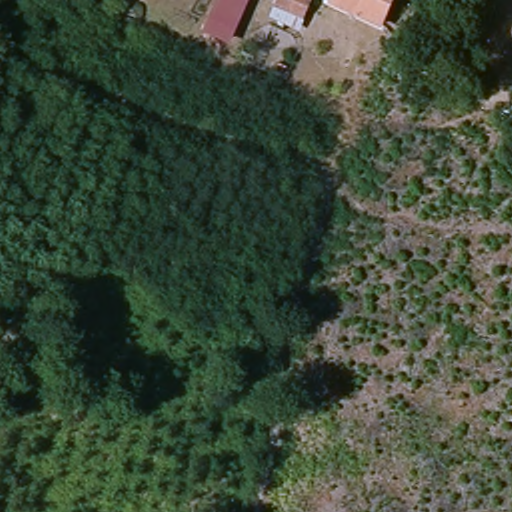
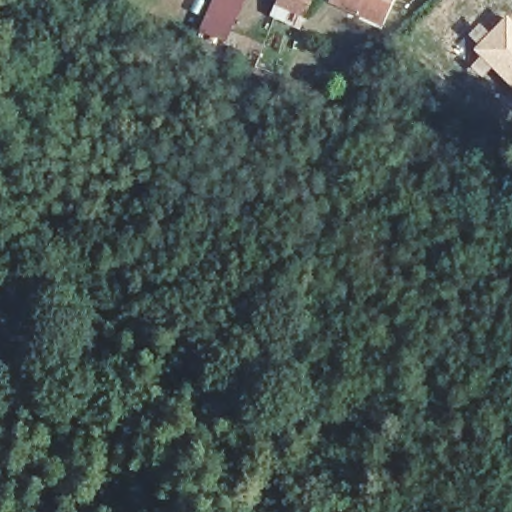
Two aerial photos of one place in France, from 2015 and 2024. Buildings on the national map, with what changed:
unchanged [(198,34),(211,0),(241,0),(224,41),(198,34)]
unchanged [(278,11),(282,0),(305,0),(306,0),(298,19),(278,11)]
unchanged [(388,0),(383,12),(354,0),(388,0)]
new [(473,50),(507,14),(512,19),(512,86),(473,50)]
unchanged [(292,24),(290,31),(273,25),(275,18),(292,24)]

